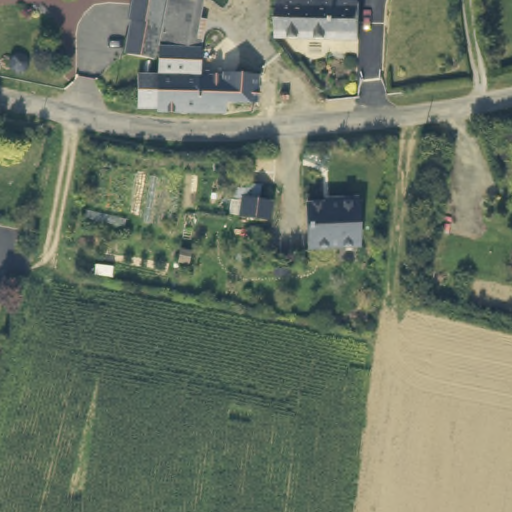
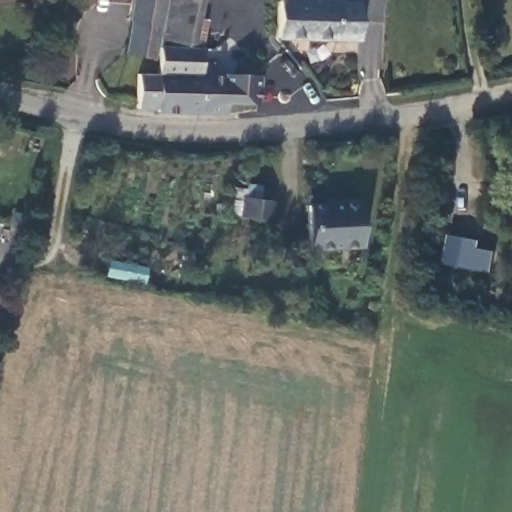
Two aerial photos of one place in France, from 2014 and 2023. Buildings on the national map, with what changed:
unchanged [(133,22),(128,21),(131,0),(167,0),(163,25),(133,22)]
unchanged [(204,18),(208,19),(206,50),(164,46),(171,0),(206,0),(204,18)]
unchanged [(361,34),(314,34),(303,34),(281,34),(281,0),(362,0),(361,34)]
unchanged [(159,59),(129,55),(133,22),(163,25),(159,59)]
unchanged [(206,50),(204,75),(202,112),(161,110),(160,105),(140,104),(140,97),(143,73),(163,74),(164,46),(206,50)]
unchanged [(261,102),(231,103),(231,112),(202,112),(204,75),(226,77),(226,74),(262,76),(261,102)]
unchanged [(235,213),(237,195),(268,199),(266,216),(235,213)]
unchanged [(304,204),(333,202),(333,198),(354,197),(356,244),(307,247),(304,204)]
new [(481,241),(480,249),(495,251),(490,273),(445,264),(451,235),(481,241)]

